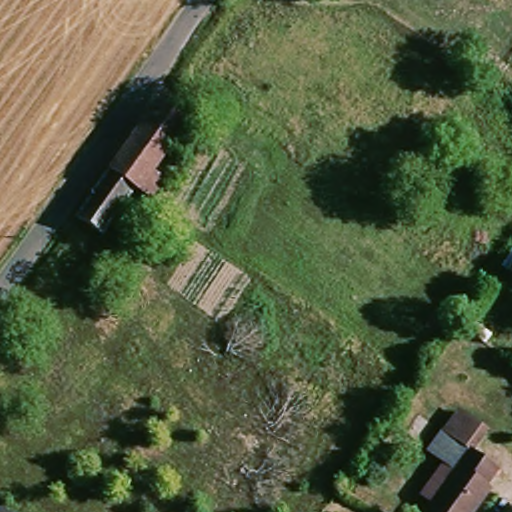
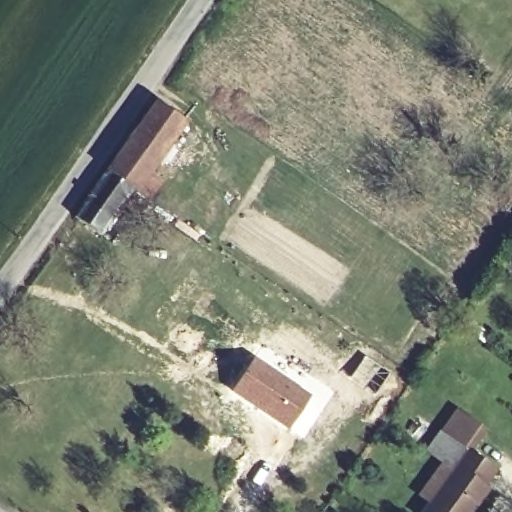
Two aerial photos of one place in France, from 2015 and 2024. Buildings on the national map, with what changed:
unchanged [(185,118),(151,170),(165,182),(153,198),(136,187),(111,168),(159,100),(185,118)]
unchanged [(111,168),(136,187),(103,236),(77,216),(111,168)]
new [(365,354),(383,368),(363,390),(347,377),(365,354)]
new [(255,355),(313,395),(287,431),(230,389),(255,355)]
unchanged [(430,501),(425,496),(449,463),(431,451),(449,424),(440,421),(452,403),(494,430),(480,453),(500,465),(490,486),(493,489),(479,512),(423,512),(430,501)]

